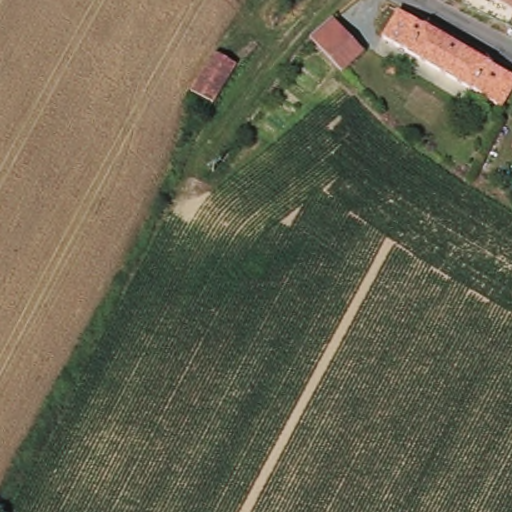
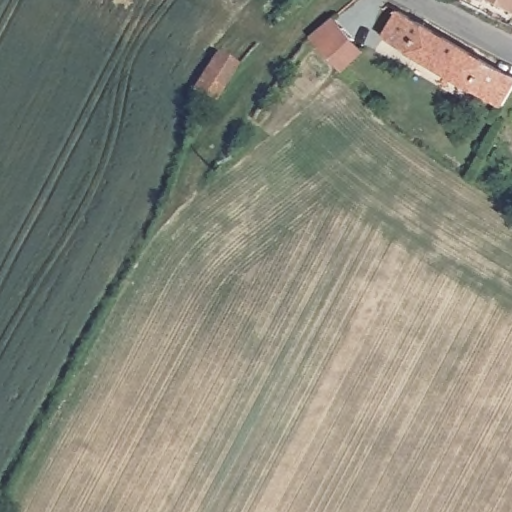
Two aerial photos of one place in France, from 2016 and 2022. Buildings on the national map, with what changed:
unchanged [(512,1),(510,0),(512,0),(512,1)]
unchanged [(396,15),(485,66),(467,93),(379,41),(396,15)]
unchanged [(344,72),(334,61),(310,36),(330,16),(354,40),(365,51),(344,72)]
unchanged [(237,61),(213,102),(189,89),(213,48),(237,61)]
unchanged [(512,86),(498,111),(467,93),(485,66),(512,82),(512,86)]

